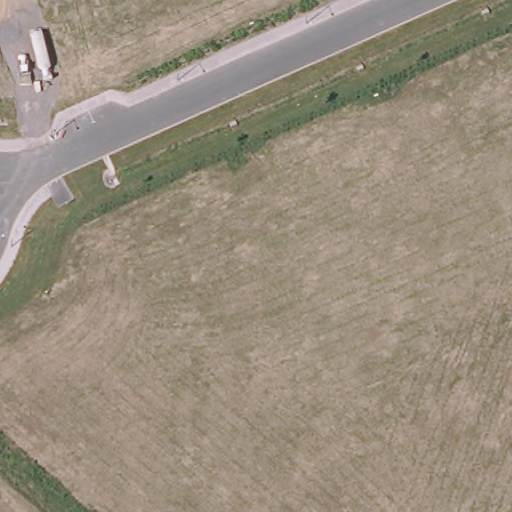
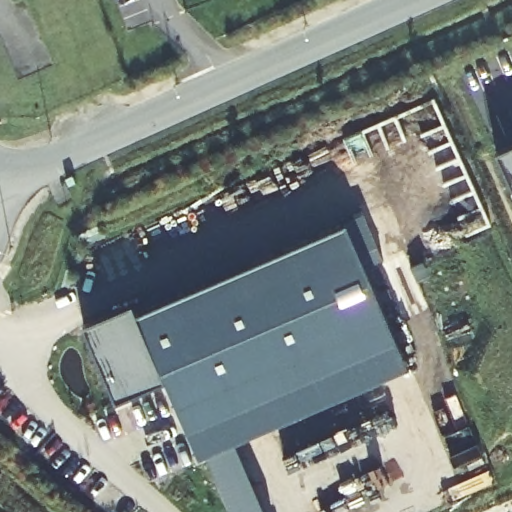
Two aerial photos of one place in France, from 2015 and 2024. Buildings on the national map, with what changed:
new [(512,147),(512,165),(505,150),(512,147)]
new [(240,438),(276,512),(237,512),(173,374),(124,396),(93,320),(140,301),(145,311),(352,219),(416,363),(240,438)]

